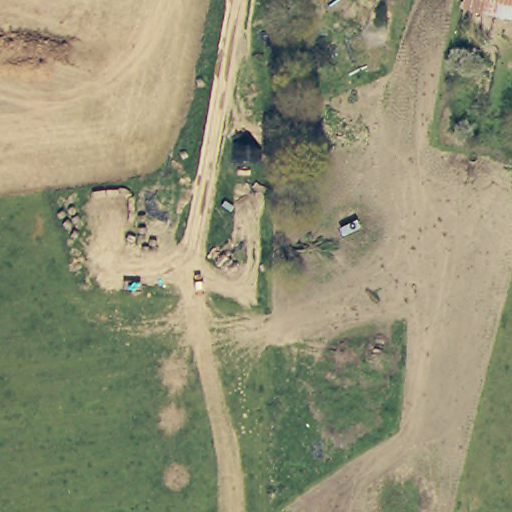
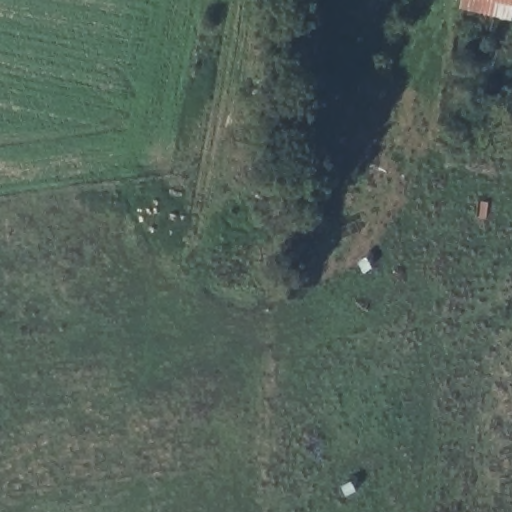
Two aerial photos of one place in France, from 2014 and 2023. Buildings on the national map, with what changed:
unchanged [(487,15),(468,11),(470,0),(512,0),(512,6),(491,2),(487,15)]

